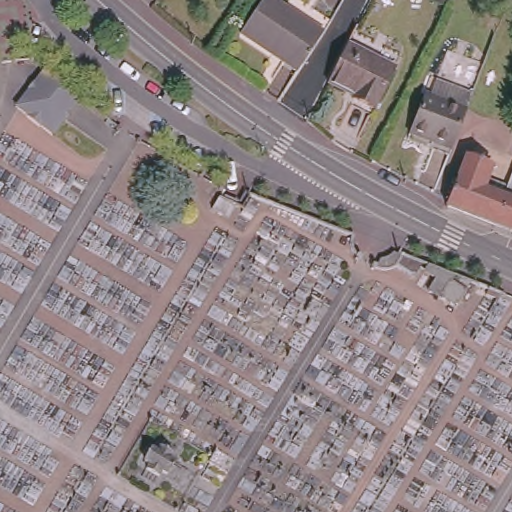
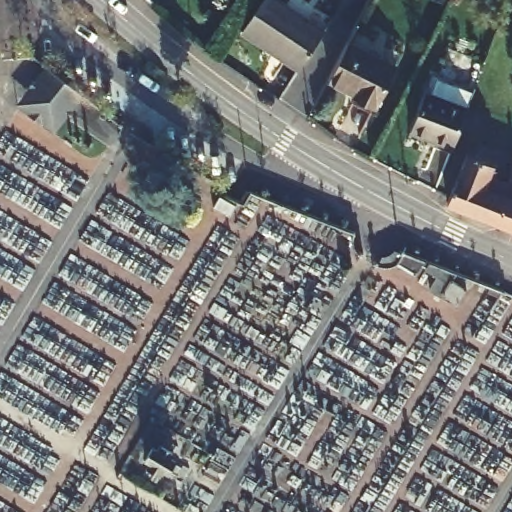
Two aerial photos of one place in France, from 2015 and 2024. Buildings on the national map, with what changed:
unchanged [(301,67),(276,49),(273,53),(241,32),(263,0),(273,0),(323,33),(301,67)]
unchanged [(371,105),(350,94),(352,90),(325,77),(344,39),(392,62),(371,105)]
unchanged [(80,88),(51,129),(18,107),(45,65),(80,88)]
unchanged [(404,128),(419,91),(424,93),(430,77),(469,92),(462,108),(448,145),(404,128)]
unchanged [(493,167),(489,179),(509,187),(512,178),(512,232),(446,206),(465,157),(493,167)]
unchanged [(244,194),(241,205),(220,196),(224,186),(244,194)]

